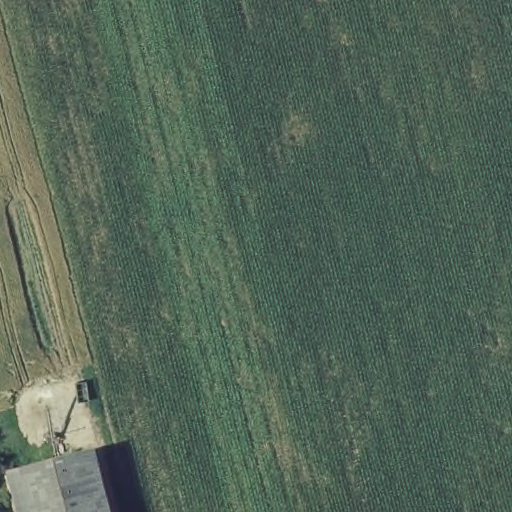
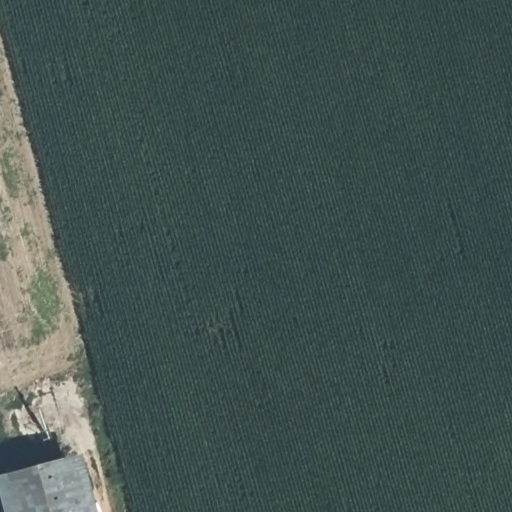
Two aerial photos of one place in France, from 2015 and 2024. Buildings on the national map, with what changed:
unchanged [(0,477),(88,455),(103,512),(8,512),(0,485),(0,477)]

